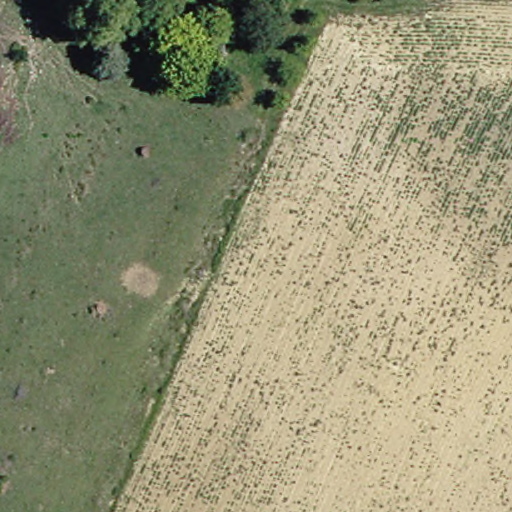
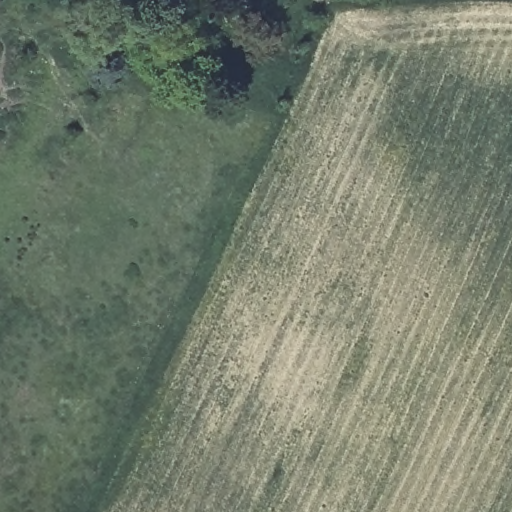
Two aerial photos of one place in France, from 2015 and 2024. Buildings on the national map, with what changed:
unchanged [(0,9),(0,0),(2,0),(0,9)]

